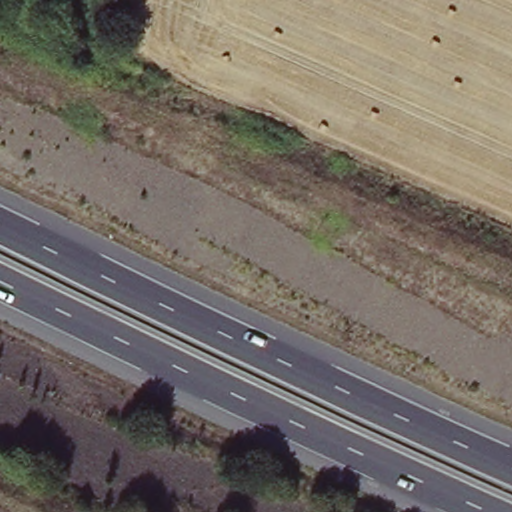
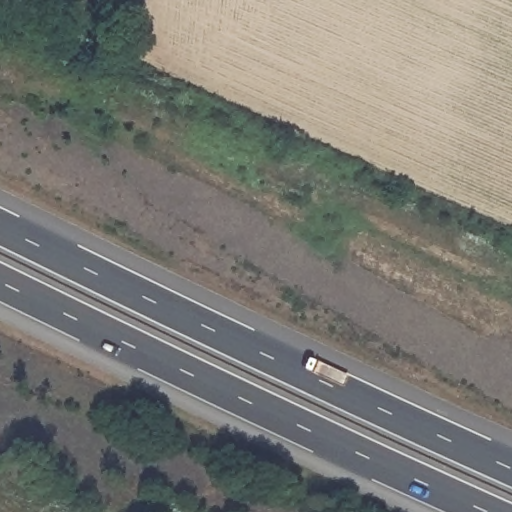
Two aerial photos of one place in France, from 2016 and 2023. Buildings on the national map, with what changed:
[]

